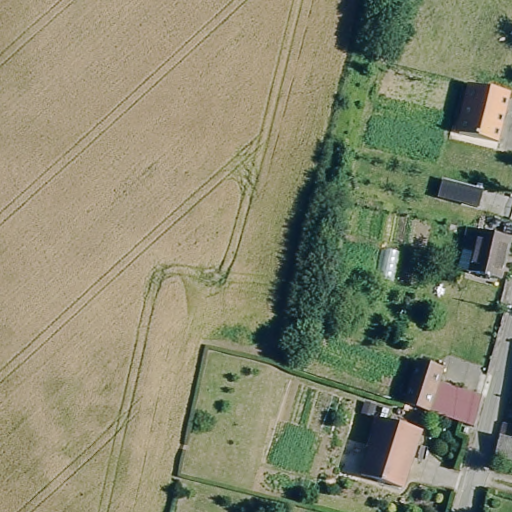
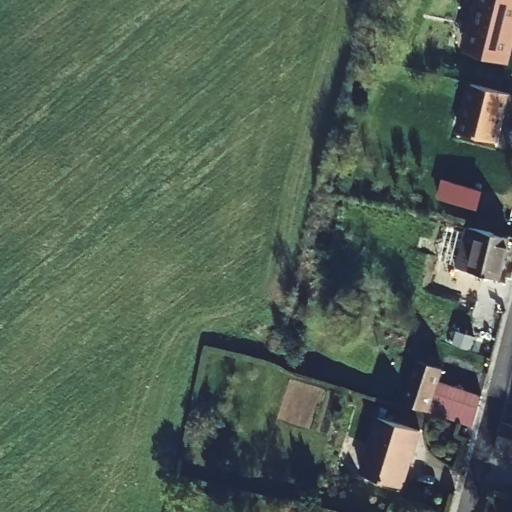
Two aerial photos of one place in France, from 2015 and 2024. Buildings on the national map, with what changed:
new [(463,52),(476,0),(512,0),(512,55),(510,65),(463,52)]
unchanged [(466,117),(475,82),(512,91),(512,103),(505,127),(466,117)]
unchanged [(509,240),(498,281),(463,272),(468,255),(458,252),(464,229),(509,240)]
unchanged [(441,367),(437,381),(485,392),(481,410),(467,407),(464,420),(404,407),(417,361),(441,367)]
unchanged [(377,419),(420,426),(405,487),(363,480),(377,419)]
unchanged [(504,421),(512,424),(512,467),(493,462),(504,421)]

